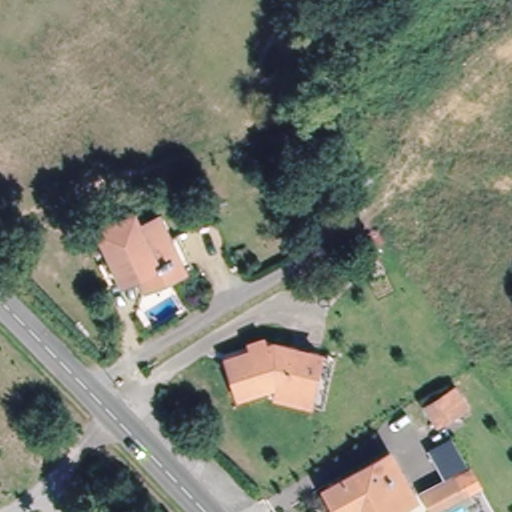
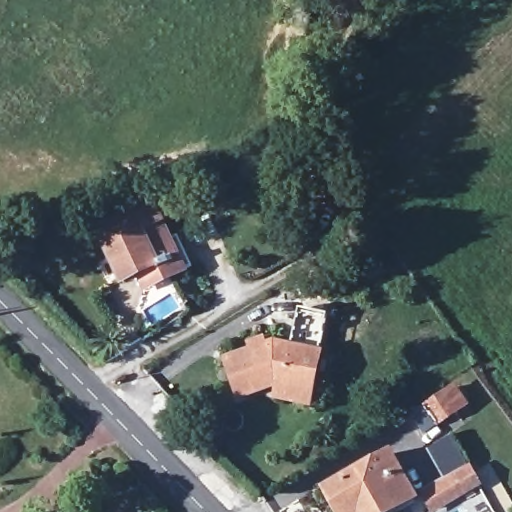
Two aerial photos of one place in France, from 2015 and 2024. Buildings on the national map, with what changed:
unchanged [(101,248),(102,248),(96,229),(135,216),(141,233),(161,226),(167,245),(175,242),(186,274),(136,291),(132,278),(113,284),(101,248)]
unchanged [(262,398),(239,405),(227,370),(255,359),(250,350),(265,346),(282,351),(318,362),(311,400),(309,410),(262,398)]
unchanged [(425,410),(442,399),(453,393),(463,409),(452,416),(435,426),(425,410)]
unchanged [(390,460),(414,502),(397,512),(336,512),(326,495),(390,460)]
unchanged [(466,496),(438,512),(431,512),(422,497),(456,478),(466,496)]

